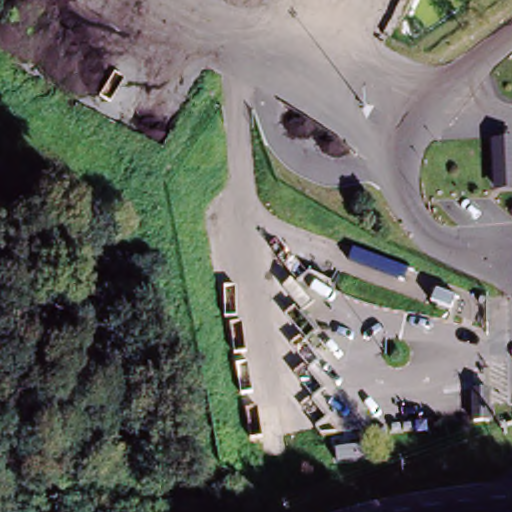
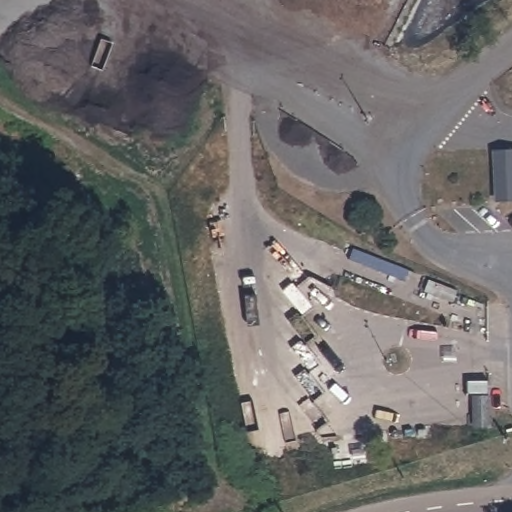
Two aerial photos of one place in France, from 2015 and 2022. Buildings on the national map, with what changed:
unchanged [(512,148),(512,195),(499,196),(496,149),(512,148)]

